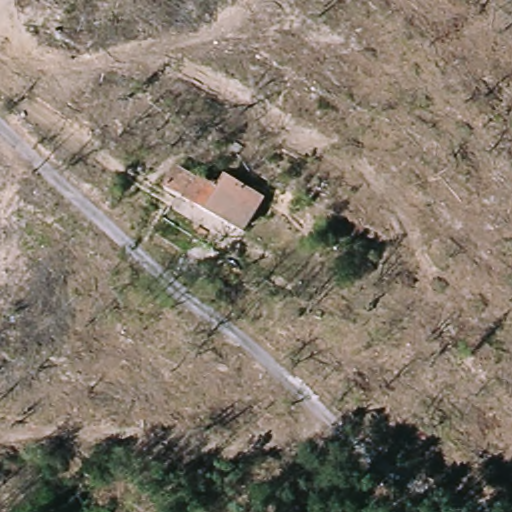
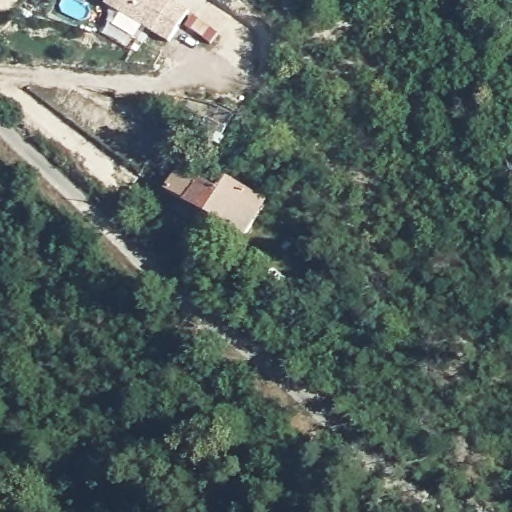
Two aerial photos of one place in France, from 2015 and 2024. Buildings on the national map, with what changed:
new [(169,43),(105,5),(108,0),(170,0),(187,9),(169,43)]
unchanged [(165,195),(177,170),(199,180),(232,197),(222,220),(194,208),(165,195)]
unchanged [(239,185),(273,202),(255,235),(222,220),(232,197),(239,185)]
unchanged [(171,274),(179,260),(203,270),(197,287),(171,274)]

